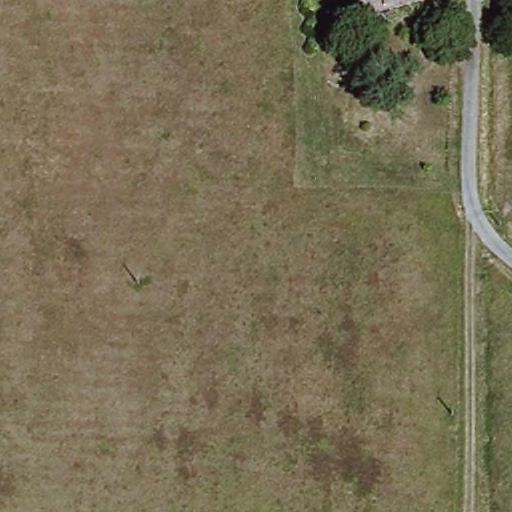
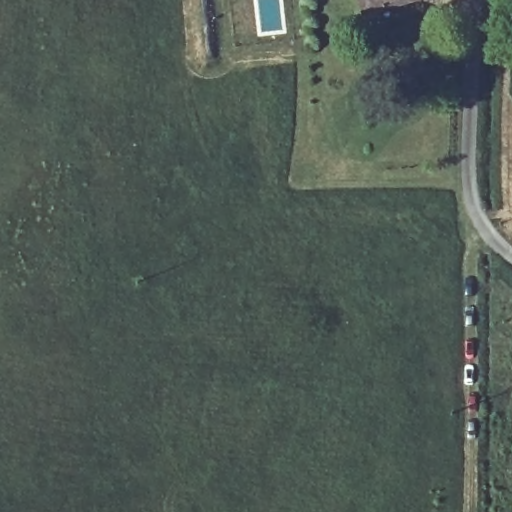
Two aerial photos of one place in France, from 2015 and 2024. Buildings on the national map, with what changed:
unchanged [(363,19),(358,0),(426,0),(363,19)]

